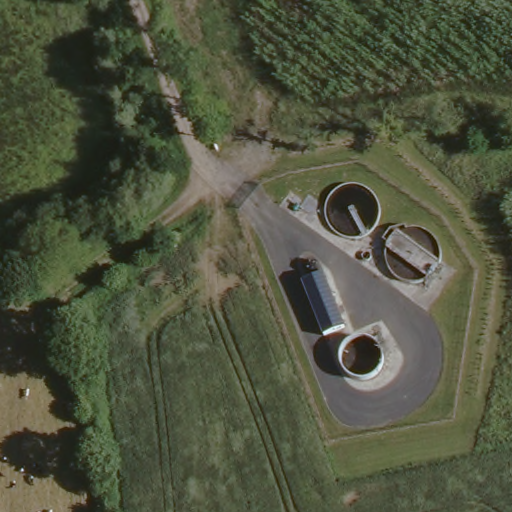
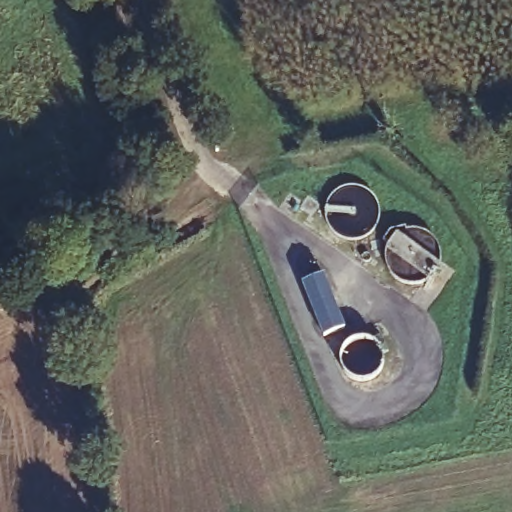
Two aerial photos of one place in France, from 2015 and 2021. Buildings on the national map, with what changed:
unchanged [(303,282),(324,274),(344,327),(324,336),(303,282)]

